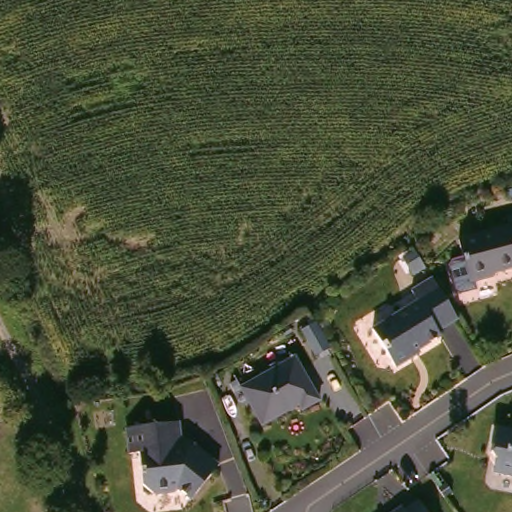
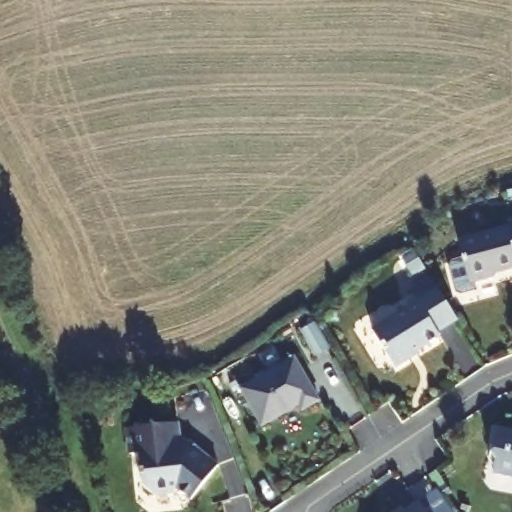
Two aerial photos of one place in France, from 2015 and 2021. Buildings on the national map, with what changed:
unchanged [(490,270),(491,273),(472,278),(467,279),(462,257),(456,236),(509,223),(510,225),(512,225),(512,265),(490,270)]
unchanged [(415,256),(422,268),(410,275),(403,263),(415,256)]
unchanged [(436,277),(461,318),(440,331),(443,335),(412,353),(413,356),(396,366),(374,327),(420,301),(414,290),(436,277)]
unchanged [(305,315),(313,329),(320,341),(303,350),(288,324),(305,315)]
unchanged [(299,357),(307,376),(305,377),(308,384),(311,383),(320,402),(302,410),(299,405),(260,423),(242,384),(299,357)]
unchanged [(135,452),(125,454),(119,429),(171,417),(175,434),(198,447),(200,444),(217,453),(194,491),(179,483),(177,486),(156,492),(142,483),(135,452)]
unchanged [(493,467),(496,455),(491,448),(496,425),(512,429),(512,471),(493,467)]
unchanged [(390,512),(400,505),(402,508),(417,498),(426,512),(390,512)]

